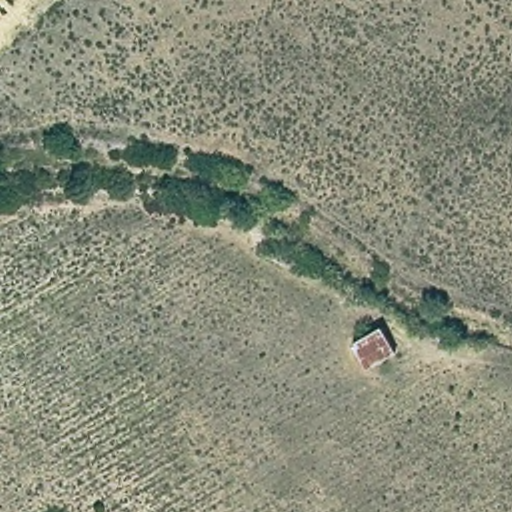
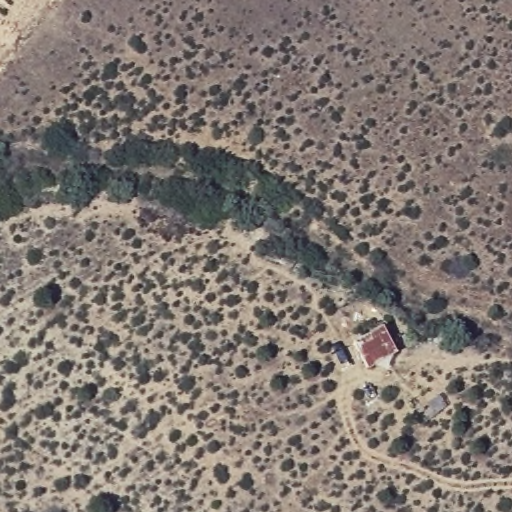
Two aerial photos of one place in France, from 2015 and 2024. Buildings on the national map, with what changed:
unchanged [(379,327),(393,352),(364,366),(351,342),(379,327)]

